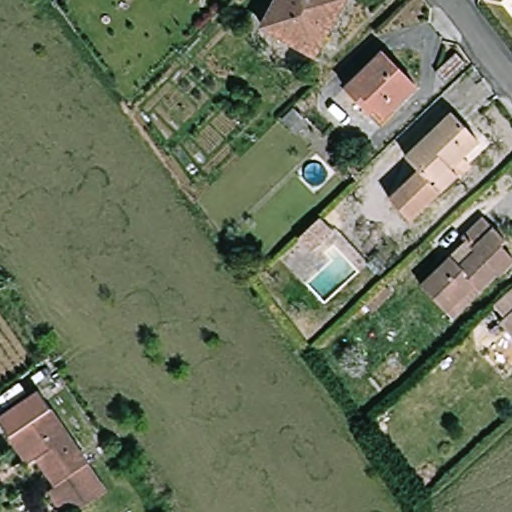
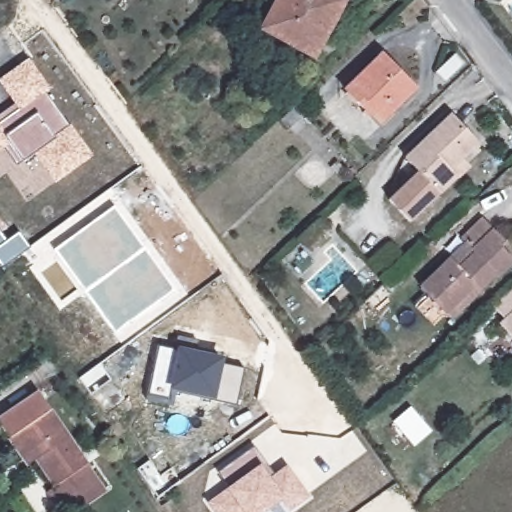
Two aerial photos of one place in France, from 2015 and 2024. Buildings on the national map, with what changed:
unchanged [(262,28),(277,0),(347,0),(331,29),(317,57),(262,28)]
unchanged [(453,51),(465,62),(446,81),(435,70),(453,51)]
unchanged [(388,128),(374,113),(350,88),(386,53),(420,88),(398,109),(403,114),(388,128)]
new [(33,152),(22,160),(16,164),(5,147),(0,151),(0,115),(15,104),(0,83),(0,79),(28,57),(50,89),(45,92),(68,125),(70,124),(93,155),(55,184),(33,152)]
unchanged [(282,119),(294,107),(307,120),(296,131),(282,119)]
unchanged [(395,201),(422,176),(410,163),(456,119),(483,147),(467,161),(475,169),(462,181),(417,224),(395,201)]
new [(113,333),(53,249),(113,205),(175,289),(113,333)]
unchanged [(420,284),(450,256),(460,266),(475,252),(460,237),(482,216),(506,242),(502,246),(512,256),(512,263),(498,276),(496,274),(479,290),(451,317),(445,310),(420,284)]
unchanged [(325,218),(338,232),(316,253),(302,239),(325,218)]
new [(2,266),(0,263),(0,231),(7,240),(19,232),(30,247),(2,266)]
unchanged [(509,322),(496,307),(512,293),(512,338),(502,327),(509,322)]
new [(214,399),(175,391),(172,405),(146,399),(147,393),(159,345),(175,349),(176,345),(177,335),(198,341),(195,349),(225,357),(223,363),(244,368),(236,405),(214,399)]
unchanged [(10,432),(0,419),(0,412),(38,385),(88,458),(55,480),(36,452),(27,458),(10,432)]
new [(281,499),(264,512),(214,512),(207,502),(226,488),(230,486),(218,472),(253,446),(273,474),(287,464),(310,496),(289,512),(281,499)]
unchanged [(62,510),(46,486),(55,480),(88,458),(105,482),(62,510)]

